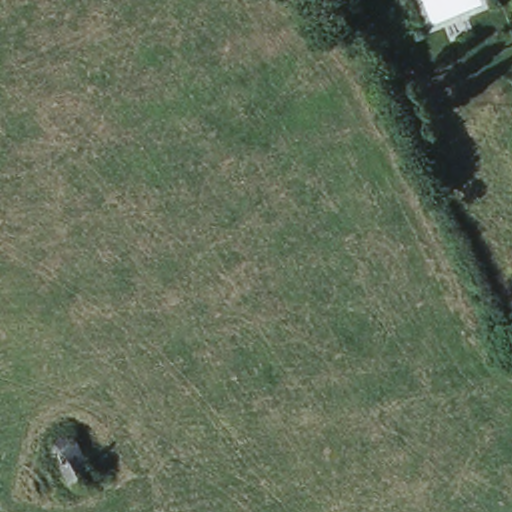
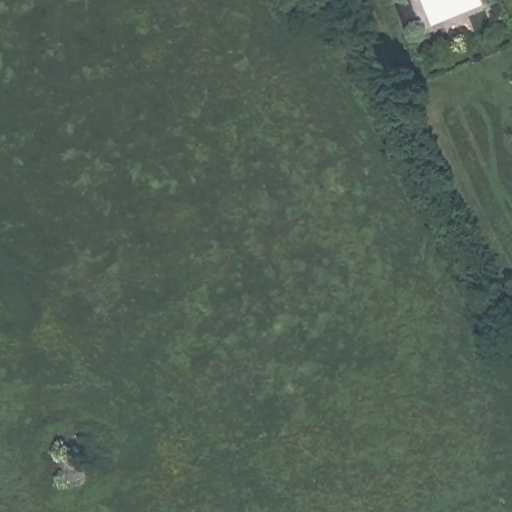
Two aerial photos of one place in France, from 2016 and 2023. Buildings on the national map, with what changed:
unchanged [(77,438),(95,475),(74,485),(56,449),(77,438)]

